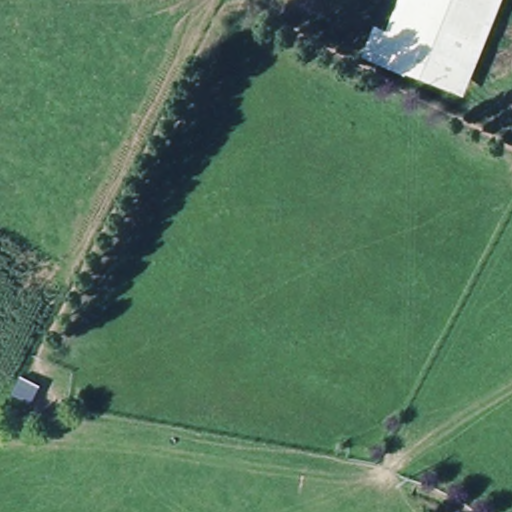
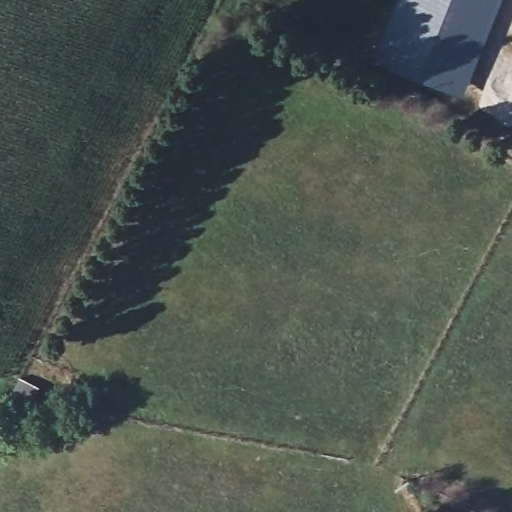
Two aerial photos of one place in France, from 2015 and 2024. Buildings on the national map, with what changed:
unchanged [(473,92),(462,88),(398,66),(422,0),(507,0),(473,92)]

